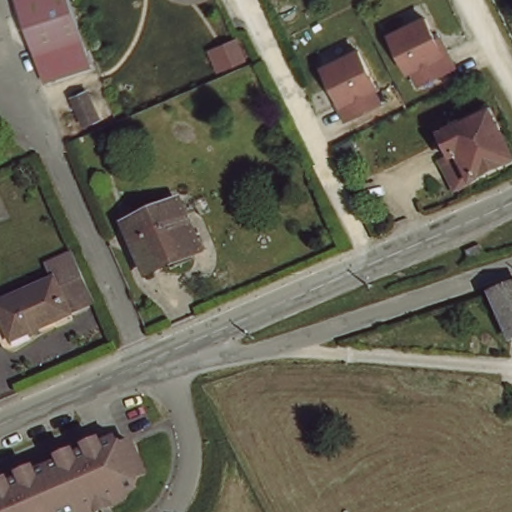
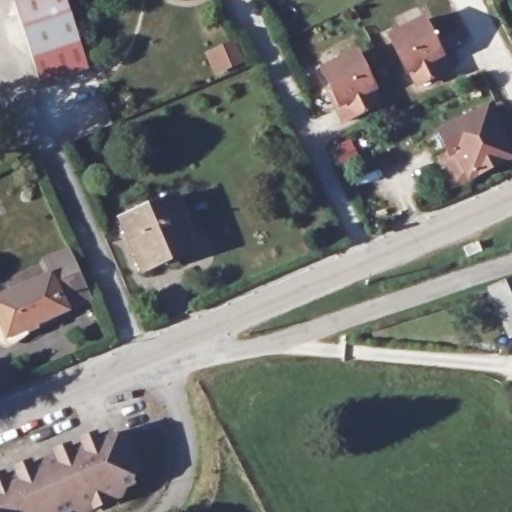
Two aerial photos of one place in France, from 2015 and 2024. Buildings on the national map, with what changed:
unchanged [(42,79),(12,0),(66,0),(90,61),(42,79)]
unchanged [(423,17),(440,52),(443,51),(450,66),(417,83),(410,68),(405,70),(388,34),(423,17)]
unchanged [(235,39),(247,63),(222,74),(209,49),(235,39)]
unchanged [(355,50),(373,86),(370,88),(377,103),(342,119),(335,104),(338,103),(321,68),(355,50)]
unchanged [(72,104),(97,94),(97,96),(102,109),(78,119),(72,105),(72,104)]
unchanged [(438,124),(487,100),(511,150),(470,169),(452,178),(438,150),(448,145),(438,124)]
unchanged [(197,247),(143,269),(122,222),(175,199),(197,247)]
unchanged [(91,298),(65,309),(66,312),(7,338),(0,320),(0,298),(53,276),(47,262),(73,252),(91,298)]
unchanged [(482,286),(512,274),(512,327),(502,331),(482,286)]
unchanged [(117,431),(120,440),(133,434),(147,466),(133,472),(137,479),(132,482),(125,493),(118,496),(112,499),(99,504),(91,507),(85,510),(73,507),(65,510),(64,512),(0,512),(0,481),(117,431)]

